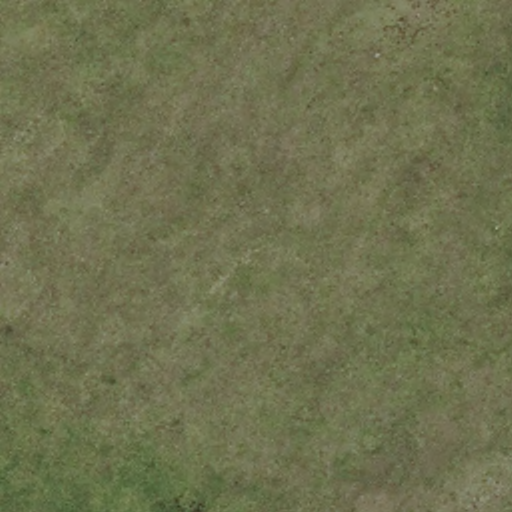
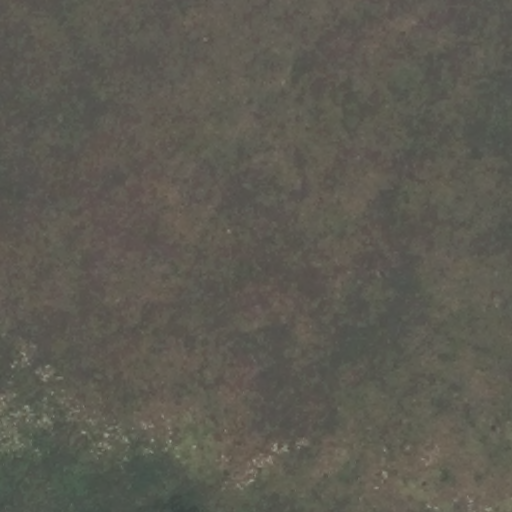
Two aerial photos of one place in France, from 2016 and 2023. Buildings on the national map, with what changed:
[]

